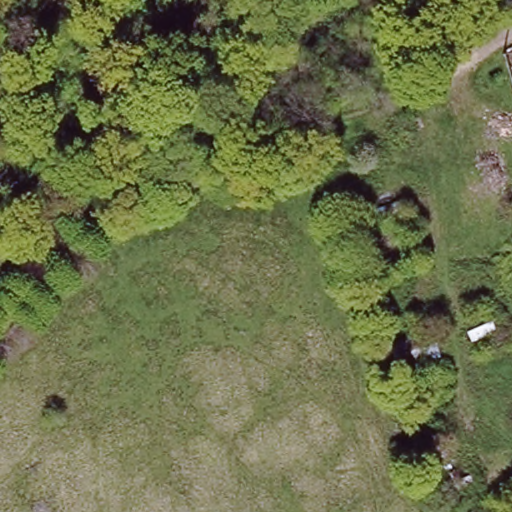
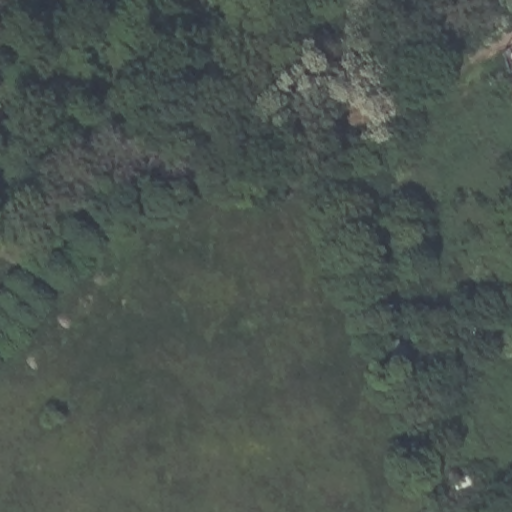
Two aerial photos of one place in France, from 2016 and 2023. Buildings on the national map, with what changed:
unchanged [(388,375),(379,342),(432,327),(443,359),(388,375)]

